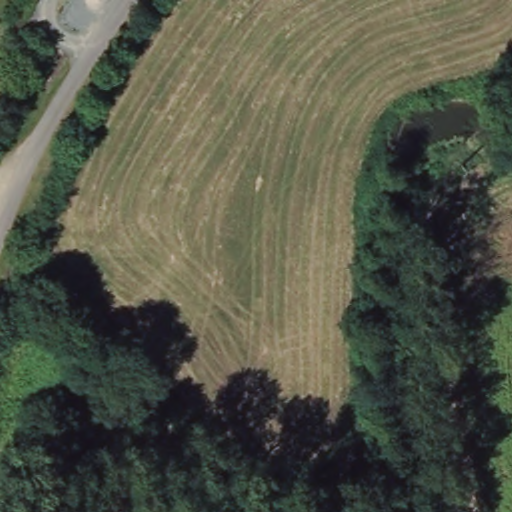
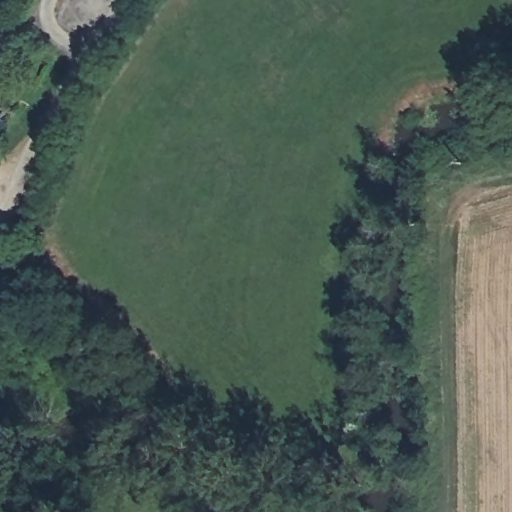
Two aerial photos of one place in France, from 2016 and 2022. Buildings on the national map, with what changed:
[]

